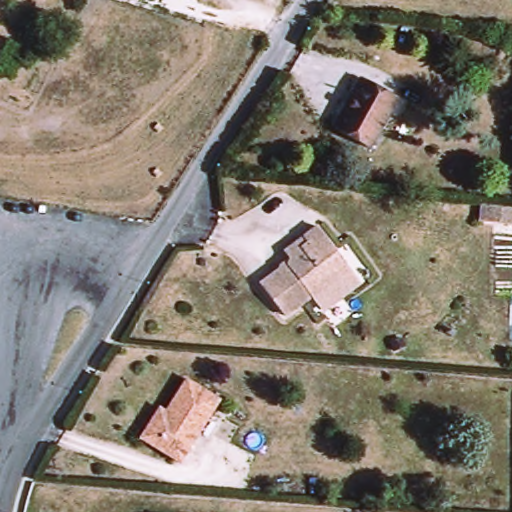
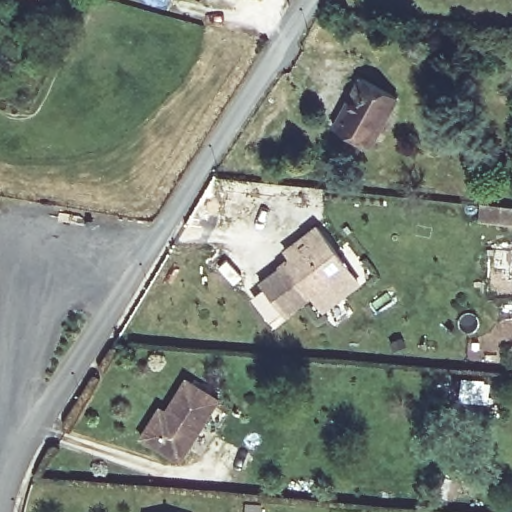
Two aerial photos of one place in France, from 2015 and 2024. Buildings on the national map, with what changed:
unchanged [(397,98),(370,148),(333,128),(362,77),(397,98)]
unchanged [(485,219),(486,203),(497,204),(512,206),(512,222),(485,219)]
unchanged [(349,267),(285,316),(260,284),(288,263),(289,258),(284,251),(303,237),(317,226),(349,267)]
unchanged [(362,286),(325,315),(312,296),(349,267),(362,286)]
unchanged [(180,462),(140,438),(159,408),(165,412),(186,379),(219,400),(180,462)]

